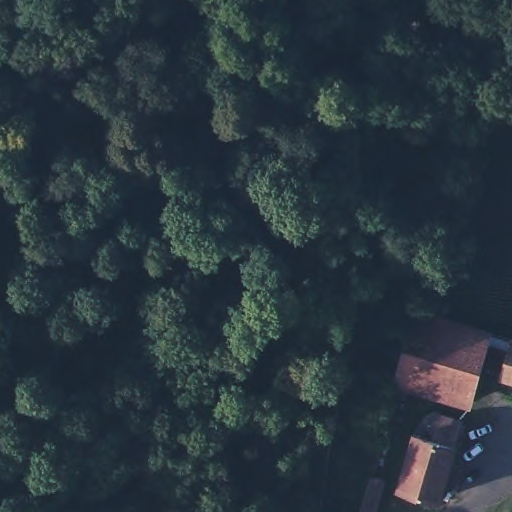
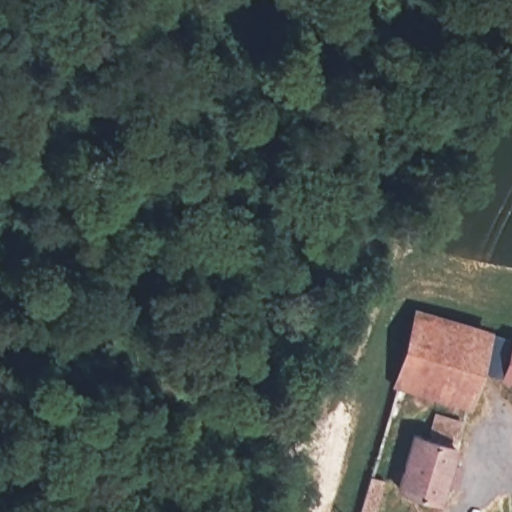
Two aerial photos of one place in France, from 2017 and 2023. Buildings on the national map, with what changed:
unchanged [(448,398),(451,391),(401,376),(421,309),(492,329),(485,363),(475,397),(467,396),(465,402),(448,398)]
unchanged [(512,373),(485,363),(492,329),(512,334),(512,373)]
unchanged [(398,482),(412,429),(429,434),(433,411),(460,420),(453,442),(438,495),(398,482)]
unchanged [(381,481),(373,512),(357,512),(367,476),(381,481)]

